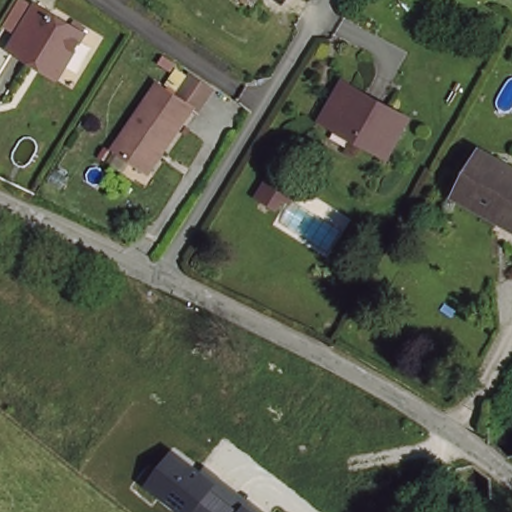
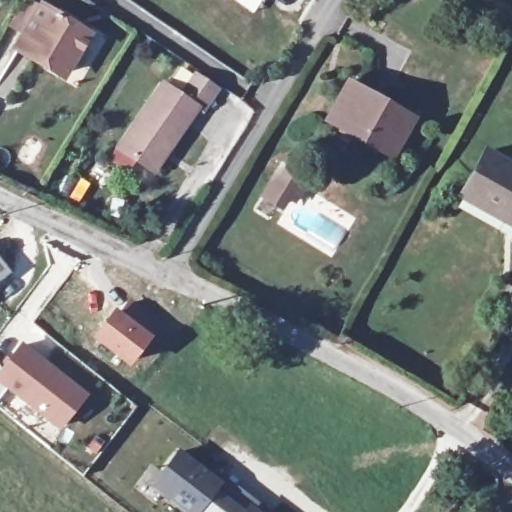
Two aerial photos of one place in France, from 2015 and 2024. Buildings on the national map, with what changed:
unchanged [(253,0),(261,0),(259,4),(253,0)]
unchanged [(18,50),(44,6),(79,28),(82,23),(93,30),(90,35),(92,36),(69,75),(37,56),(35,61),(18,50)]
unchanged [(117,147),(157,81),(176,93),(187,74),(211,90),(199,108),(195,105),(154,171),(117,147)]
unchanged [(331,122),(352,88),(364,95),(409,122),(387,156),(331,122)]
unchanged [(462,198),(484,155),(512,173),(512,228),(462,198)]
new [(0,260),(9,272),(0,280),(0,260)]
new [(91,338),(112,307),(120,312),(129,300),(161,323),(151,336),(127,367),(91,338)]
new [(5,389),(0,395),(0,361),(4,356),(7,360),(22,342),(87,394),(58,432),(5,389)]
unchanged [(211,466),(267,512),(186,512),(150,484),(177,449),(207,472),(211,466)]

